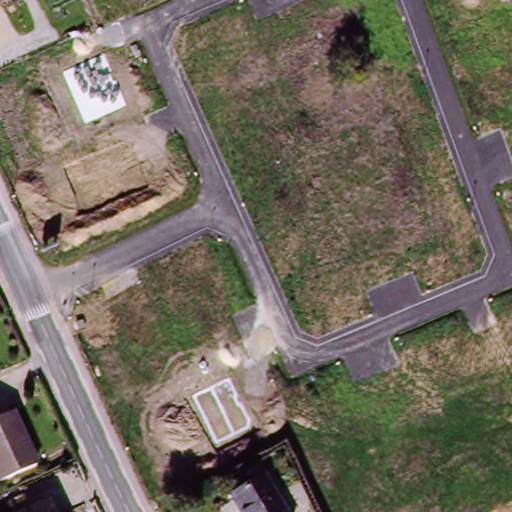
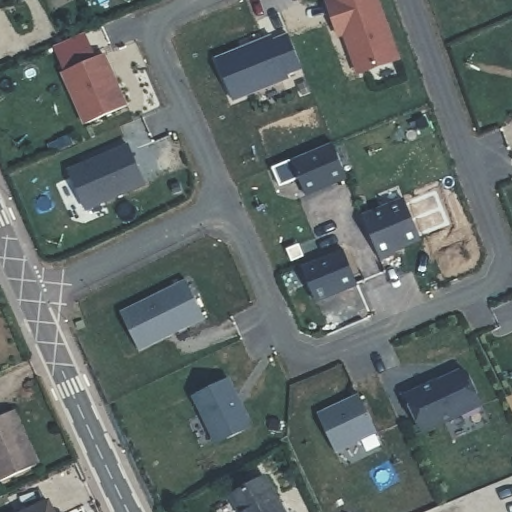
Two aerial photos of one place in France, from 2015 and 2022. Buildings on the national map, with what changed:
new [(376,0),(398,60),(358,75),(344,35),(338,37),(325,2),(332,0),(376,0)]
new [(84,31),(96,55),(104,51),(128,107),(83,126),(60,73),(64,72),(53,45),(84,31)]
demolished [(144,83),(127,47),(156,34),(173,69),(144,83)]
new [(271,36),(273,40),(288,34),(301,67),(286,72),(288,77),(232,100),(215,59),(271,36)]
new [(332,142),(347,177),(306,195),(299,177),(280,186),(272,167),(332,142)]
new [(128,145),(146,184),(86,210),(69,171),(128,145)]
new [(404,199),(421,239),(395,250),(396,252),(380,258),(363,216),(404,199)]
new [(361,282),(316,301),(300,265),(341,248),(361,282)]
new [(186,285),(206,323),(140,355),(121,317),(186,285)]
new [(463,370),(469,372),(484,404),(424,432),(407,395),(463,370)]
new [(229,376),(251,420),(248,431),(216,447),(191,396),(229,376)]
new [(361,393),(379,432),(337,452),(319,413),(361,393)]
unchanged [(0,411),(8,407),(33,460),(0,475),(0,411)]
unchanged [(267,480),(284,512),(243,512),(235,497),(267,480)]
unchanged [(48,498),(54,512),(15,512),(48,498)]

